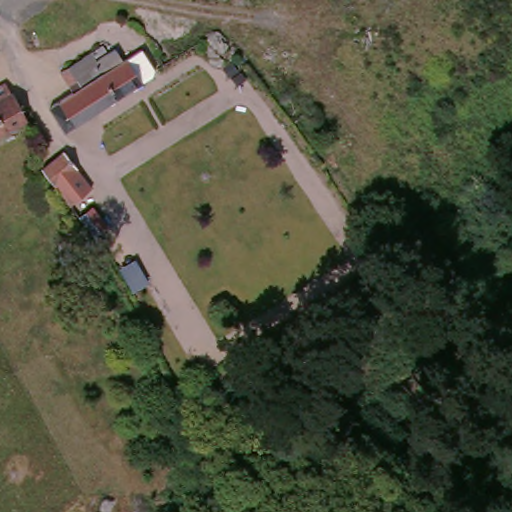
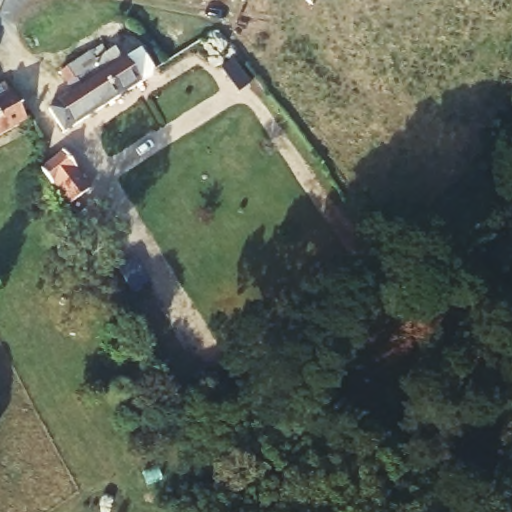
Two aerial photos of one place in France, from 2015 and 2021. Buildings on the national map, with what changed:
unchanged [(163,75),(144,85),(112,102),(96,79),(79,89),(64,66),(93,49),(106,69),(138,50),(163,75)]
unchanged [(112,102),(68,132),(52,106),(79,89),(96,79),(112,102)]
unchanged [(0,137),(0,87),(10,84),(28,123),(0,137)]
unchanged [(66,200),(56,186),(42,163),(63,150),(76,173),(84,190),(66,200)]
unchanged [(88,238),(77,222),(98,207),(114,228),(88,238)]

